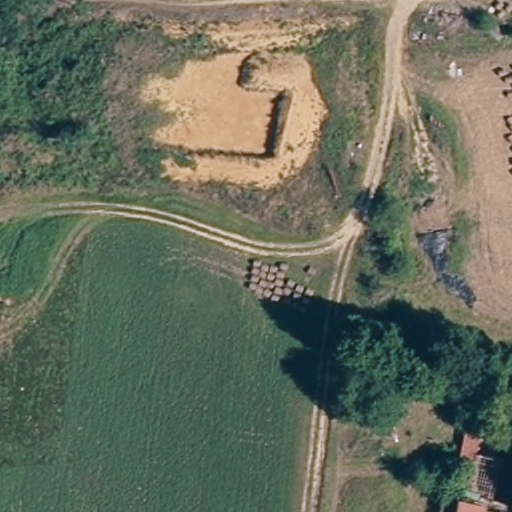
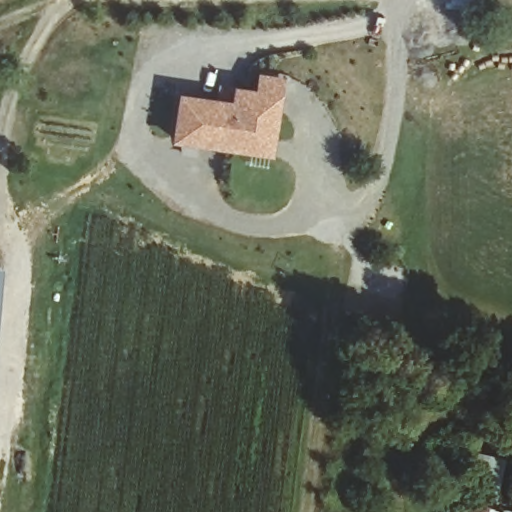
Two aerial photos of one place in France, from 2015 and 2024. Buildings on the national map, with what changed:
new [(258,76),(286,78),(284,94),(274,159),(173,144),(180,96),(217,100),(220,87),(234,87),(256,91),(258,76)]
new [(0,289),(0,272),(1,272),(0,289)]
unchanged [(454,512),(455,505),(497,512),(454,512)]

